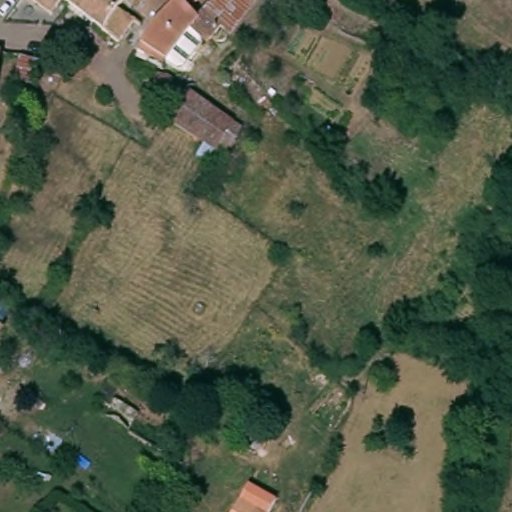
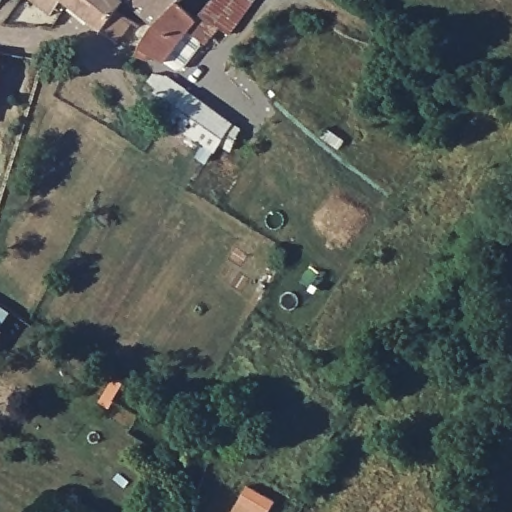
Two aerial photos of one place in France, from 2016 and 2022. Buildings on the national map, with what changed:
unchanged [(61,0),(58,3),(52,11),(38,0),(61,0)]
unchanged [(147,24),(131,45),(117,37),(70,0),(123,0),(119,6),(147,24)]
unchanged [(190,9),(181,1),(180,1),(168,11),(163,16),(158,21),(156,19),(138,6),(137,5),(131,0),(198,0),(196,1),(190,9)]
unchanged [(228,28),(224,25),(207,12),(203,9),(212,0),(254,0),(231,30),(228,28)]
unchanged [(163,16),(168,11),(180,1),(181,1),(190,9),(197,16),(201,12),(203,9),(207,12),(224,25),(228,28),(226,34),(222,36),(218,38),(213,33),(211,35),(204,29),(179,62),(165,57),(144,44),(158,21),(163,16)]
unchanged [(0,65),(0,50),(2,50),(0,65)]
unchanged [(59,72),(54,85),(42,81),(46,68),(59,72)]
unchanged [(148,90),(152,84),(146,75),(152,68),(165,75),(236,125),(227,149),(216,141),(211,149),(170,121),(163,116),(172,104),(148,90)]
unchanged [(232,69),(269,108),(256,121),(219,80),(232,69)]
unchanged [(0,333),(0,328),(2,329),(0,333)]
unchanged [(271,512),(235,512),(244,496),(245,497),(251,487),(271,498),(265,508),(271,512)]
unchanged [(161,511),(162,512),(161,512),(161,511)]

